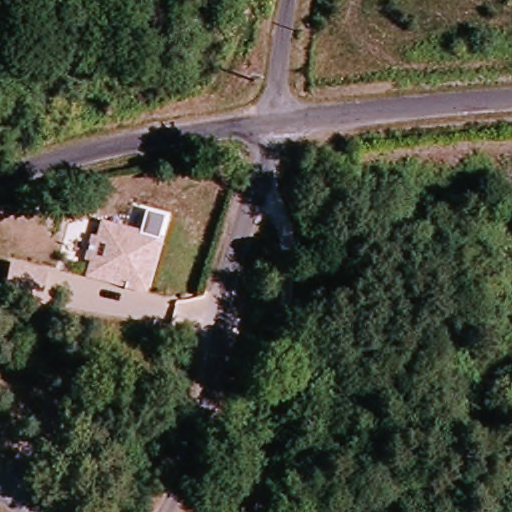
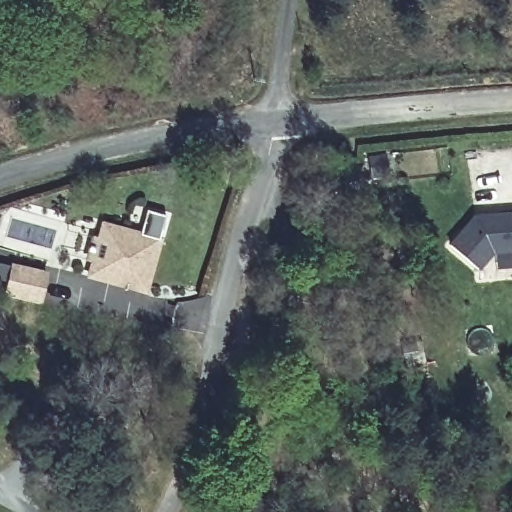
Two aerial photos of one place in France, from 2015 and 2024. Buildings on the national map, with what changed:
new [(477,215),(512,212),(512,249),(495,250),(481,267),(453,244),(477,215)]
unchanged [(42,300),(40,310),(1,303),(9,265),(46,273),(48,270),(85,278),(89,265),(83,263),(89,235),(96,236),(100,222),(164,239),(139,322),(42,300)]

